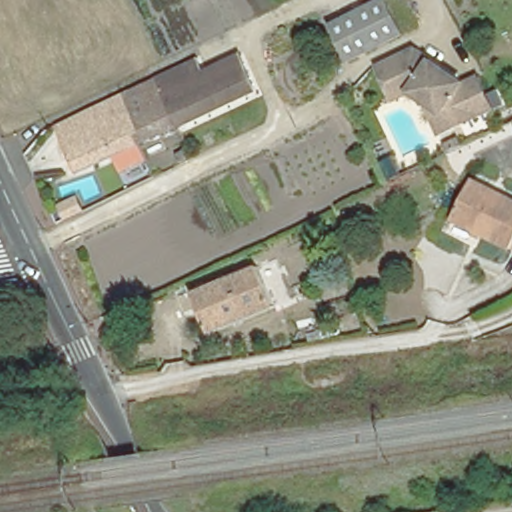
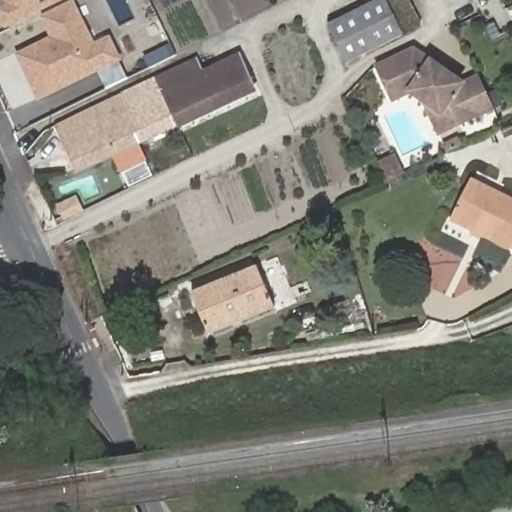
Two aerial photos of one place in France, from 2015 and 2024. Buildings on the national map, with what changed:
new [(6,28),(0,15),(0,0),(66,0),(6,28)]
new [(118,61),(127,78),(106,88),(98,71),(37,101),(14,53),(49,35),(40,15),(69,0),(75,0),(95,42),(109,36),(121,60),(118,61)]
unchanged [(350,60),(332,25),(379,0),(405,0),(418,24),(400,34),(350,60)]
unchanged [(410,48),(455,79),(457,83),(474,75),(489,107),(435,132),(420,99),(407,90),(389,99),(373,65),(410,48)]
unchanged [(161,79),(200,60),(207,74),(243,56),(259,88),(183,125),(161,79)]
unchanged [(168,152),(160,136),(144,144),(135,124),(142,121),(134,104),(139,102),(136,96),(131,98),(129,94),(161,79),(183,125),(190,142),(168,152)]
unchanged [(84,173),(61,127),(129,94),(131,98),(136,96),(139,102),(134,104),(142,121),(135,124),(144,144),(84,173)]
unchanged [(512,250),(508,248),(507,249),(450,220),(469,182),(512,204),(512,250)]
unchanged [(61,204),(76,197),(84,211),(68,219),(61,204)]
unchanged [(274,307),(209,333),(192,292),(257,266),(274,307)]

